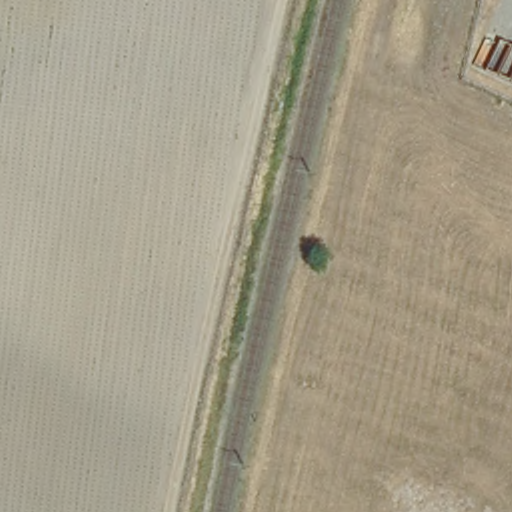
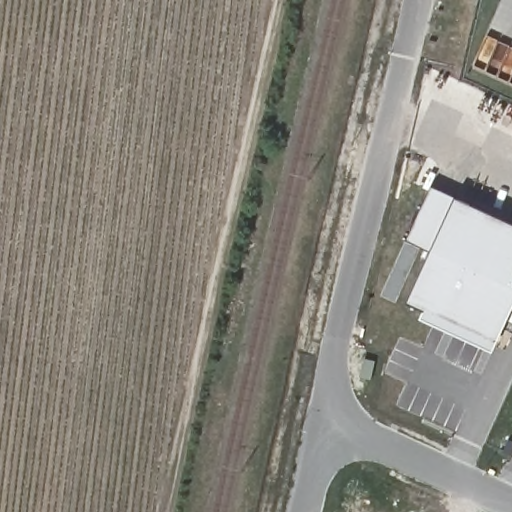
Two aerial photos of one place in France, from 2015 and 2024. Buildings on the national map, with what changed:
new [(424,309),(407,301),(431,250),(407,239),(431,186),(455,196),(512,222),(512,308),(493,350),(419,318),(424,309)]

